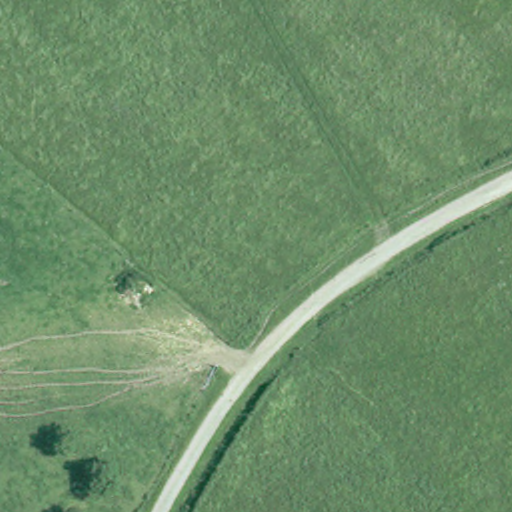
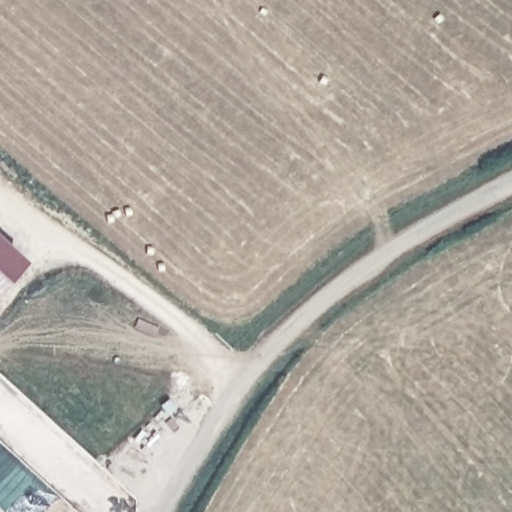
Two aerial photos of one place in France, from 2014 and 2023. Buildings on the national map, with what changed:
new [(24,258),(0,286),(0,237),(24,258)]

